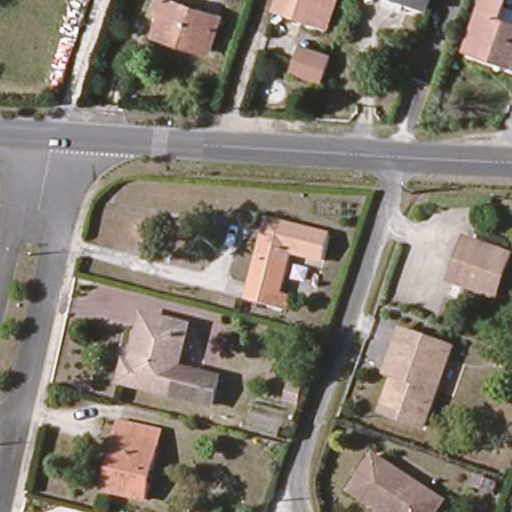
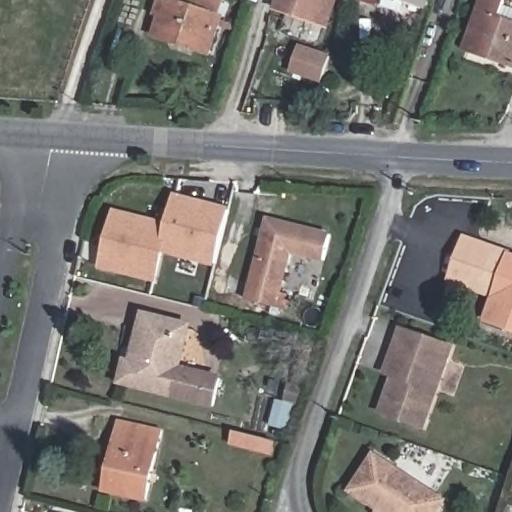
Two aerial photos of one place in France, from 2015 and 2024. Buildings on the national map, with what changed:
unchanged [(173,0),(219,15),(205,53),(201,51),(153,36),(162,13),(157,9),(161,3),(162,0),(173,0)]
unchanged [(277,5),(279,0),(327,0),(322,13),(320,20),(296,12),(277,5)]
unchanged [(413,0),(432,0),(429,6),(413,0)]
unchanged [(512,7),(512,71),(462,54),(482,0),(507,0),(506,5),(512,7)]
unchanged [(292,76),(299,55),(329,63),(321,86),(292,76)]
new [(164,255),(157,284),(98,269),(113,208),(166,222),(174,193),(229,207),(214,268),(164,255)]
unchanged [(326,233),(322,257),(285,252),(276,308),(248,304),(262,222),(326,233)]
unchanged [(511,258),(495,297),(452,283),(468,241),(511,258)]
new [(495,297),(511,258),(506,256),(509,251),(512,252),(512,331),(484,322),(492,296),(495,297)]
unchanged [(180,368),(221,378),(213,410),(123,388),(145,313),(192,324),(180,368)]
unchanged [(447,347),(423,429),(382,417),(392,377),(385,377),(398,334),(447,347)]
unchanged [(107,469),(117,422),(161,432),(145,504),(110,496),(102,494),(107,469)]
unchanged [(442,502),(435,512),(386,512),(350,488),(375,455),(442,502)]

